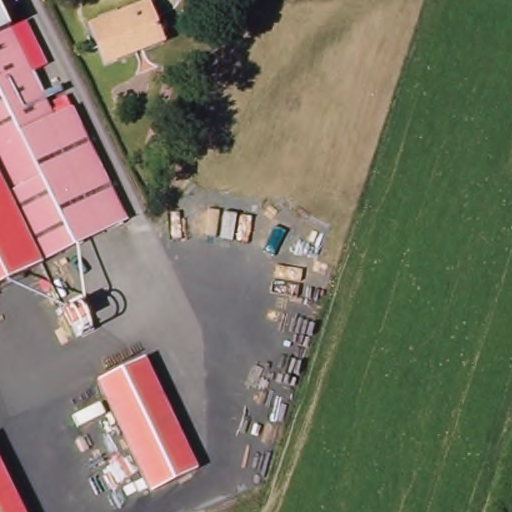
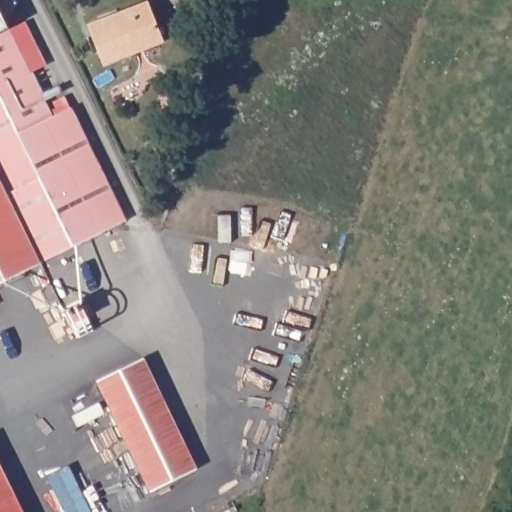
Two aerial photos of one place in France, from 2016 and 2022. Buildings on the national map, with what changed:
unchanged [(0,0),(12,0),(15,1),(6,21),(9,28),(25,21),(45,66),(35,71),(54,109),(70,102),(125,218),(42,263),(0,177),(0,0)]
unchanged [(147,0),(164,42),(106,65),(90,22),(147,0)]
unchanged [(0,283),(0,177),(42,263),(0,283)]
unchanged [(80,300),(89,315),(71,324),(64,308),(80,300)]
unchanged [(144,357),(197,467),(150,491),(95,382),(144,357)]
unchanged [(0,462),(24,512),(0,512),(0,462)]

